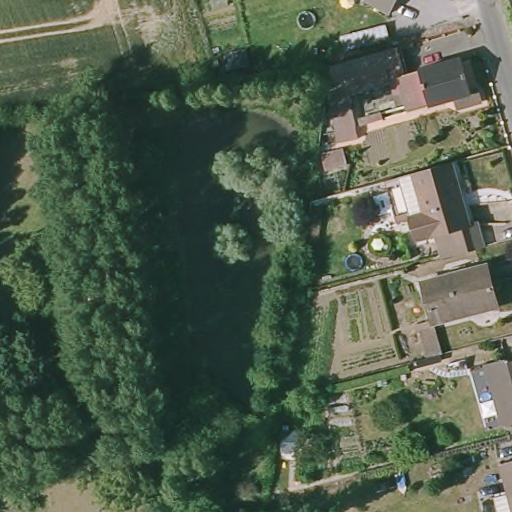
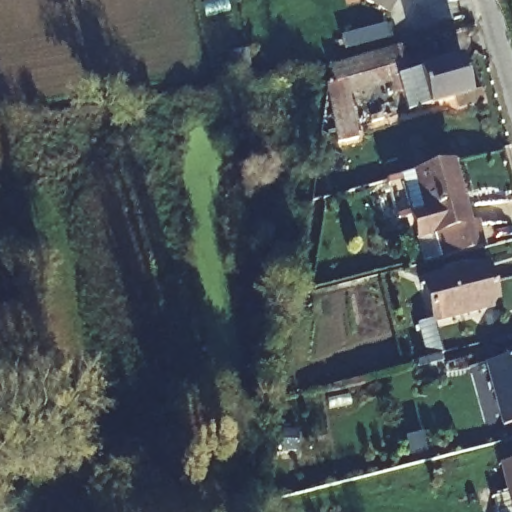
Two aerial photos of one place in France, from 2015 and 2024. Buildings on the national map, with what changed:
unchanged [(369,9),(366,0),(404,0),(392,21),(369,9)]
unchanged [(397,71),(399,77),(419,74),(427,102),(410,108),(403,86),(391,91),(387,76),(349,88),(362,133),(341,140),(330,77),(332,65),(389,46),(397,71)]
unchanged [(457,51),(470,86),(477,84),(479,94),(461,101),(458,91),(434,99),(427,102),(419,74),(399,77),(397,71),(457,51)]
unchanged [(249,59),(251,74),(232,78),(230,63),(249,59)]
unchanged [(347,143),(350,158),(333,163),(329,147),(347,143)]
unchanged [(466,224),(474,221),(483,247),(455,256),(445,259),(437,235),(416,243),(409,220),(394,181),(411,175),(445,164),(466,224)]
unchanged [(439,320),(429,282),(492,262),(505,301),(442,319),(450,352),(435,356),(425,324),(439,320)]
unchanged [(503,358),(505,362),(512,359),(512,421),(505,424),(485,363),(503,358)]
unchanged [(494,501),(510,496),(501,466),(512,462),(512,512),(498,512),(494,501)]

